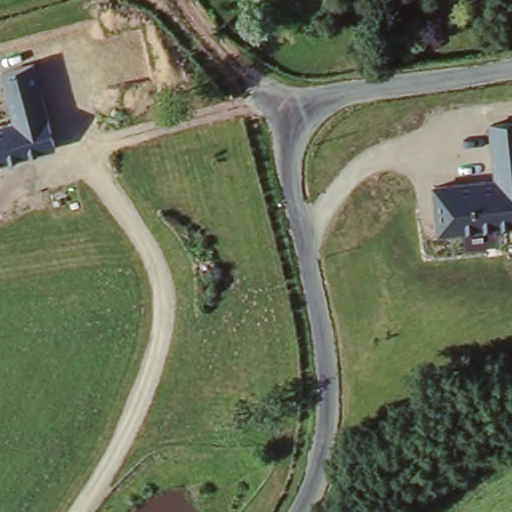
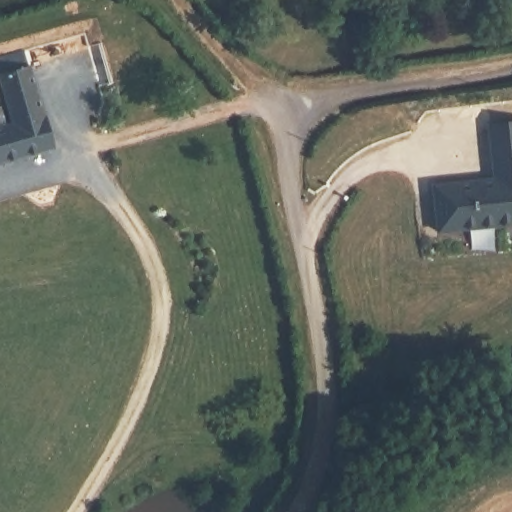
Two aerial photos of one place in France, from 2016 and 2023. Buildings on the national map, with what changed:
unchanged [(0,81),(0,75),(32,65),(56,149),(0,163),(0,126),(12,123),(0,81)]
unchanged [(432,185),(496,178),(490,125),(512,122),(512,225),(437,234),(432,185)]

